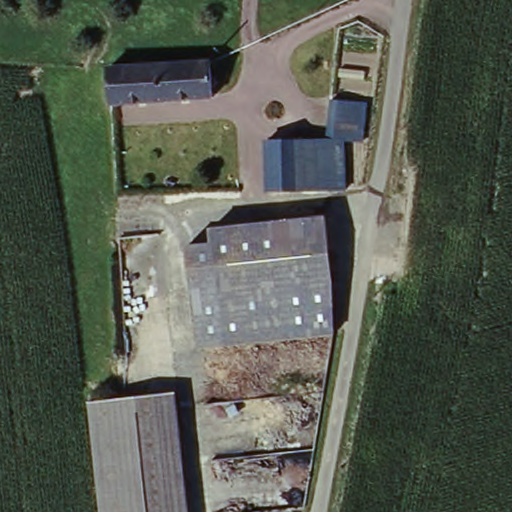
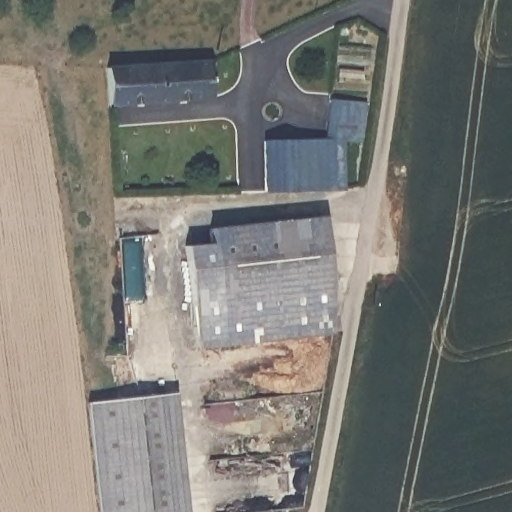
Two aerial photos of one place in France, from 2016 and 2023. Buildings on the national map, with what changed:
unchanged [(208,66),(209,97),(107,100),(106,69),(208,66)]
unchanged [(342,142),(324,142),(328,104),(364,104),(359,140),(342,142)]
unchanged [(342,142),(342,194),(300,196),(299,145),(324,142),(342,142)]
unchanged [(263,147),(299,145),(300,196),(265,195),(263,147)]
unchanged [(186,247),(207,245),(207,229),(322,218),(328,280),(192,293),(186,247)]
unchanged [(199,352),(192,293),(328,280),(330,306),(331,338),(199,352)]
unchanged [(162,401),(178,399),(190,512),(173,512),(162,401)]
unchanged [(162,401),(173,512),(103,512),(93,407),(162,401)]

